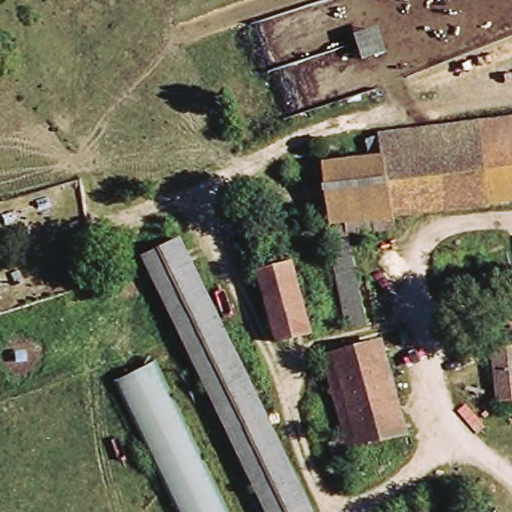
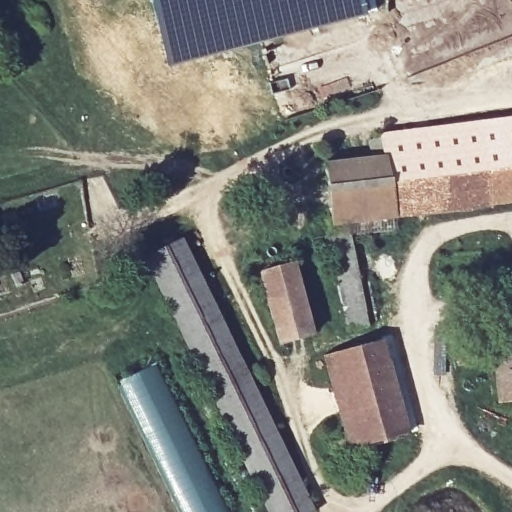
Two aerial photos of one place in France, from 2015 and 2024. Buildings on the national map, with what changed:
new [(367,15),(167,67),(150,0),(363,0),(367,15)]
unchanged [(385,6),(384,0),(406,0),(385,6)]
new [(346,76),(352,91),(322,102),(316,86),(346,76)]
unchanged [(512,122),(512,207),(485,210),(477,127),(512,122)]
unchanged [(377,137),(477,127),(485,210),(394,220),(387,154),(377,155),(377,142),(377,137)]
unchanged [(363,166),(361,144),(377,142),(377,155),(387,154),(394,220),(329,226),(322,171),(363,166)]
unchanged [(325,237),(345,233),(365,331),(346,334),(325,237)]
unchanged [(141,259),(176,242),(306,512),(260,512),(197,376),(141,259)]
unchanged [(289,271),(310,337),(279,347),(258,280),(289,271)]
unchanged [(485,326),(512,322),(512,405),(497,407),(485,326)]
unchanged [(330,442),(341,439),(322,359),(382,345),(408,436),(332,456),(330,442)]
unchanged [(159,363),(230,512),(177,512),(116,386),(159,363)]

